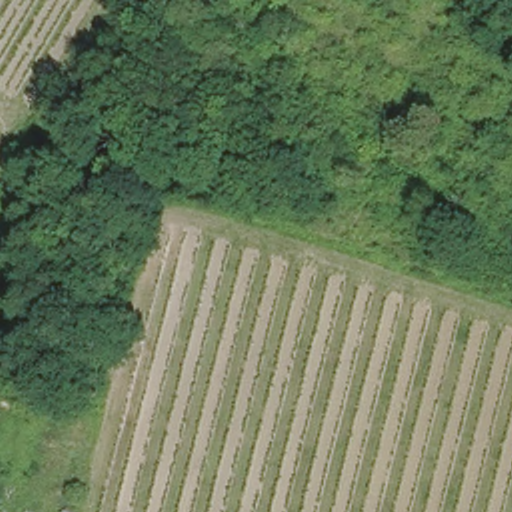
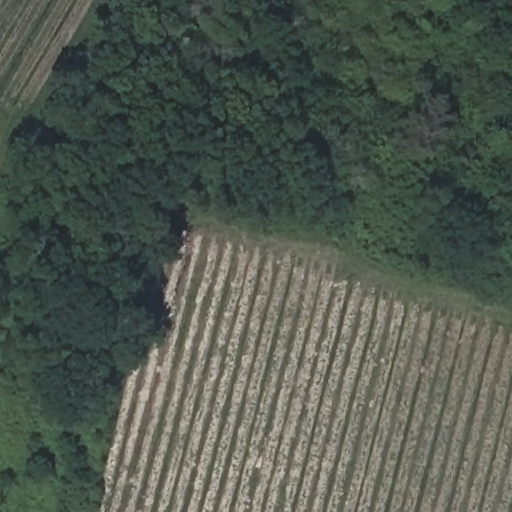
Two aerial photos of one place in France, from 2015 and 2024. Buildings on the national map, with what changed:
[]

